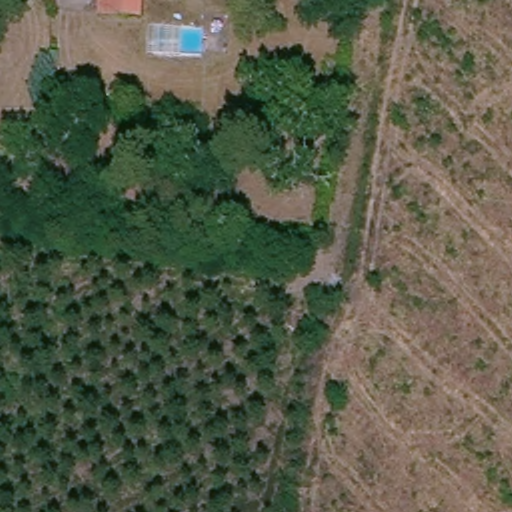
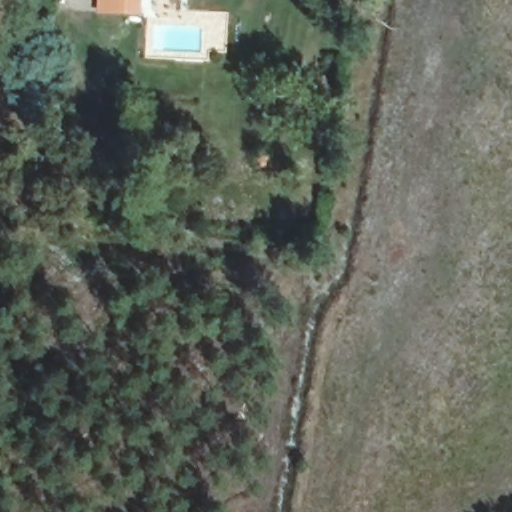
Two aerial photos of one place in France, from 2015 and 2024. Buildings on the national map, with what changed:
unchanged [(95,6),(95,0),(131,0),(131,8),(95,6)]

